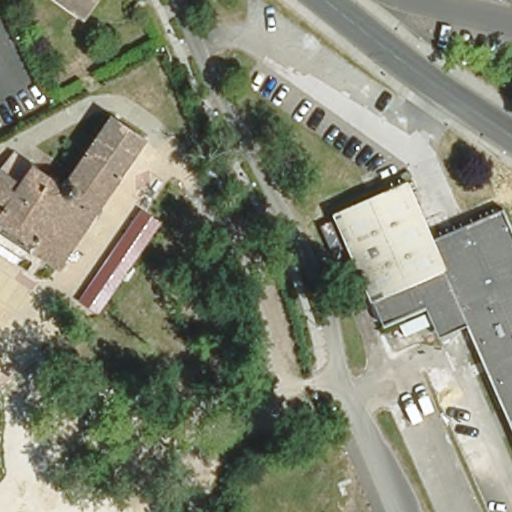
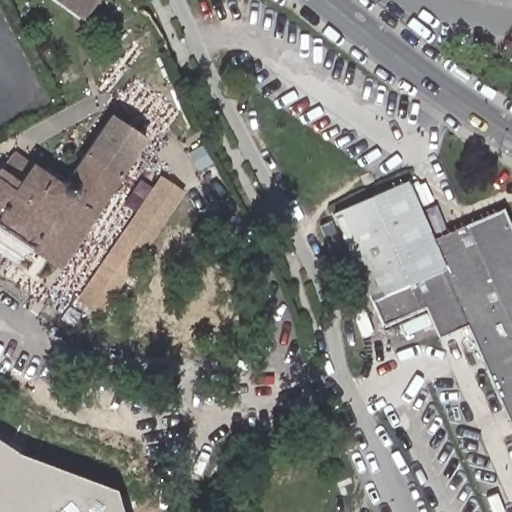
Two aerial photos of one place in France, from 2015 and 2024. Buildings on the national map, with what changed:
unchanged [(70,0),(76,0),(97,0),(89,13),(74,3),(70,0)]
unchanged [(33,246),(25,257),(0,240),(0,170),(2,167),(22,180),(34,163),(66,185),(114,115),(149,139),(62,266),(33,246)]
new [(99,317),(76,301),(161,175),(185,192),(99,317)]
unchanged [(454,298),(424,311),(383,330),(333,219),(404,186),(429,243),(501,213),(512,239),(512,429),(467,327),(454,298)]
unchanged [(438,341),(424,311),(454,298),(467,327),(438,341)]
new [(123,490),(130,512),(0,512),(0,436),(25,453),(123,490)]

